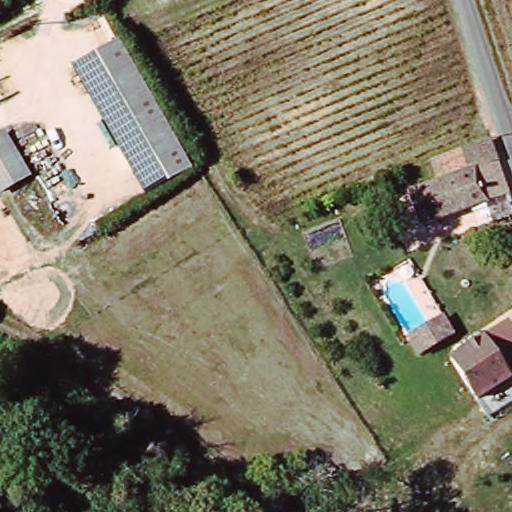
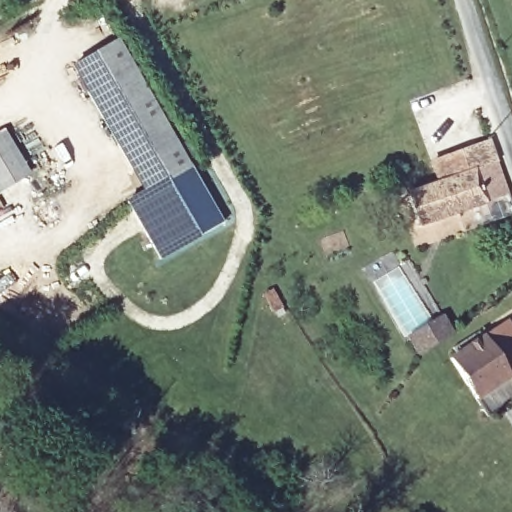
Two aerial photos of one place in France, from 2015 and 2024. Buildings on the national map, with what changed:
unchanged [(110,43),(127,65),(85,95),(68,70),(110,43)]
unchanged [(178,142),(135,169),(85,95),(127,65),(178,142)]
unchanged [(178,142),(192,163),(150,191),(135,169),(178,142)]
unchanged [(430,162),(488,142),(506,194),(417,227),(405,193),(438,180),(430,162)]
unchanged [(29,189),(0,207),(0,153),(5,150),(29,189)]
new [(226,219),(162,259),(130,205),(150,191),(192,163),(226,219)]
unchanged [(455,333),(421,354),(411,339),(446,319),(455,333)]
unchanged [(503,364),(489,373),(498,386),(480,398),(454,359),(472,347),(480,359),(493,350),(503,364)]

